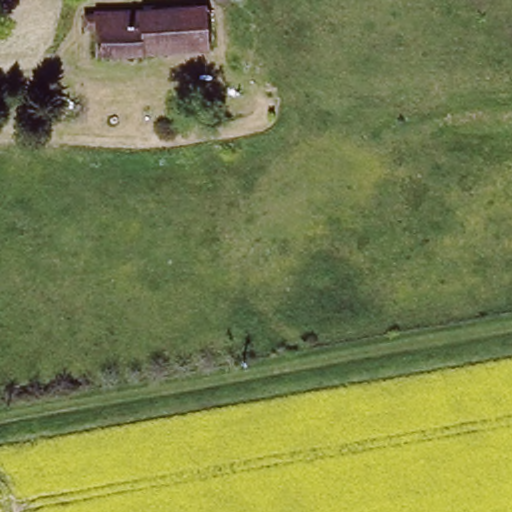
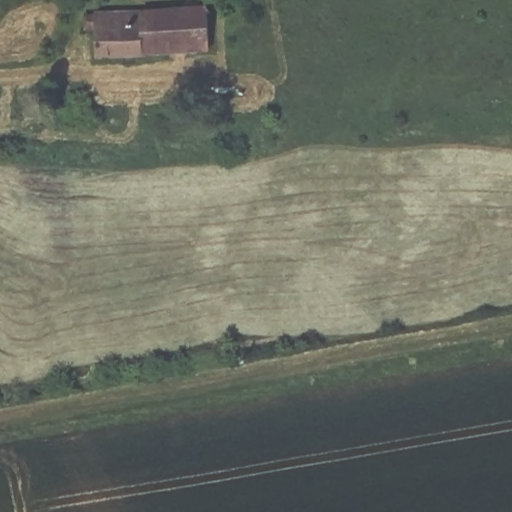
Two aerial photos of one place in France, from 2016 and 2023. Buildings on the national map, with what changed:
unchanged [(207,6),(209,48),(95,53),(93,13),(207,6)]

